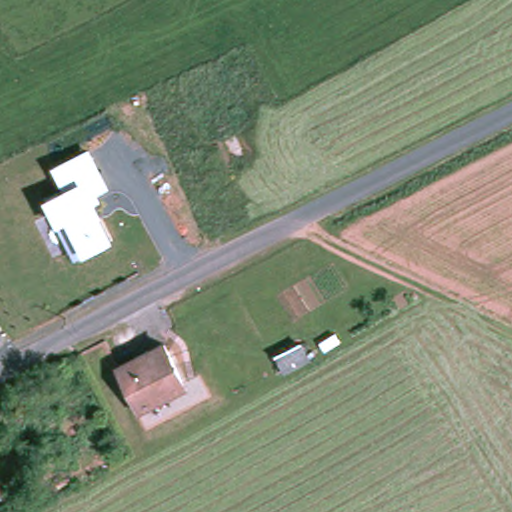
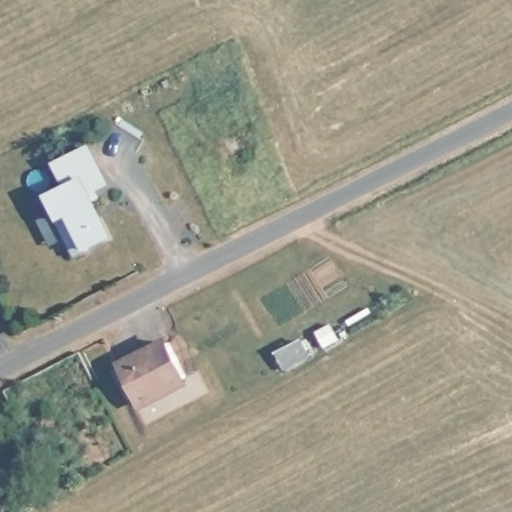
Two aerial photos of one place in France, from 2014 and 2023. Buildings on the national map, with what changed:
unchanged [(64,186),(52,163),(90,142),(110,182),(97,190),(100,197),(95,200),(114,239),(74,257),(43,196),(64,186)]
unchanged [(130,374),(173,352),(192,389),(175,397),(149,410),(146,405),(130,374)]
unchanged [(10,491),(0,497),(0,472),(10,491)]

